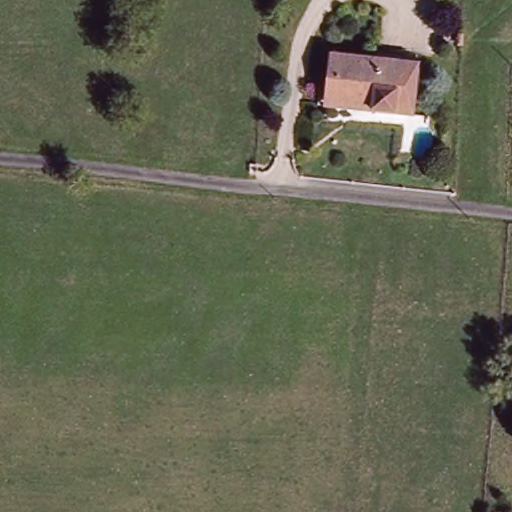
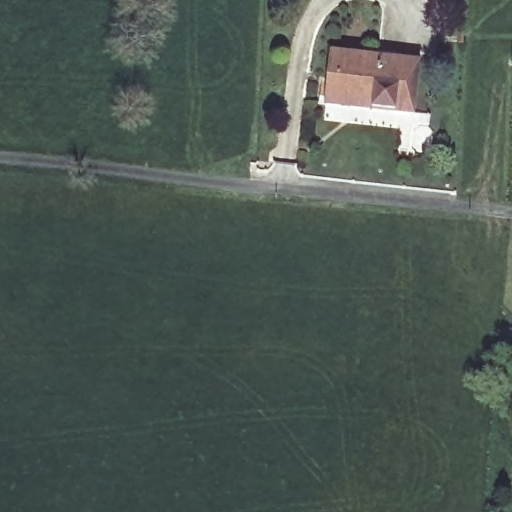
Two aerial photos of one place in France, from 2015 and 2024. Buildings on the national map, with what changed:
unchanged [(322,104),(325,61),(371,64),(371,57),(394,57),(394,66),(414,67),(411,118),(367,115),(321,112),(322,104)]

